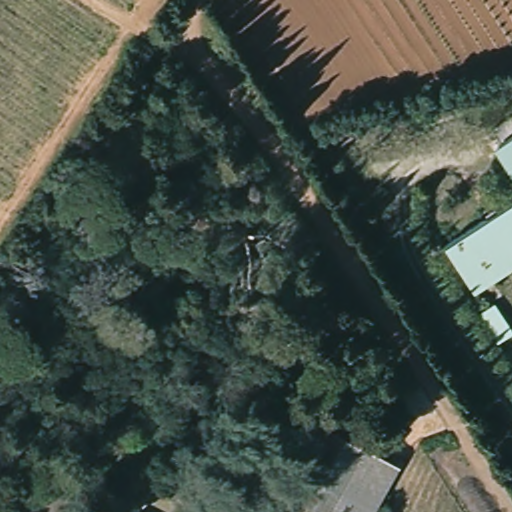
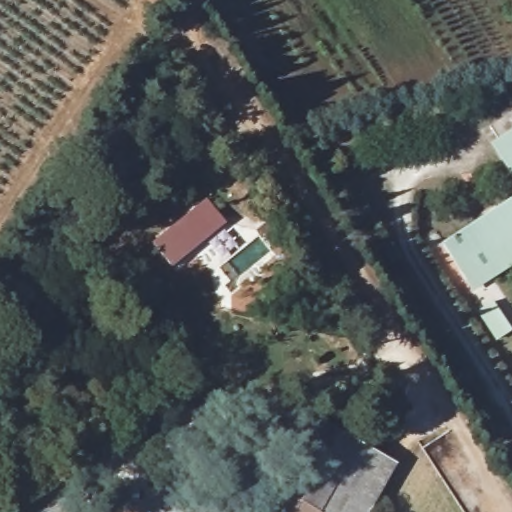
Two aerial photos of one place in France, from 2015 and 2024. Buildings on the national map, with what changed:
unchanged [(462,119),(425,127),(424,114),(461,106),(462,119)]
unchanged [(507,142),(499,132),(512,123),(512,160),(502,146),(507,142)]
new [(173,267),(153,243),(208,199),(227,223),(173,267)]
unchanged [(512,208),(512,260),(477,284),(455,247),(512,208)]
unchanged [(512,333),(495,343),(475,314),(493,303),(512,333)]
unchanged [(359,440),(317,512),(270,512),(322,421),(359,440)]
unchanged [(379,451),(343,512),(317,512),(359,440),(379,451)]
unchanged [(400,463),(372,512),(343,512),(379,451),(400,463)]
unchanged [(78,473),(95,512),(30,512),(23,496),(78,473)]

